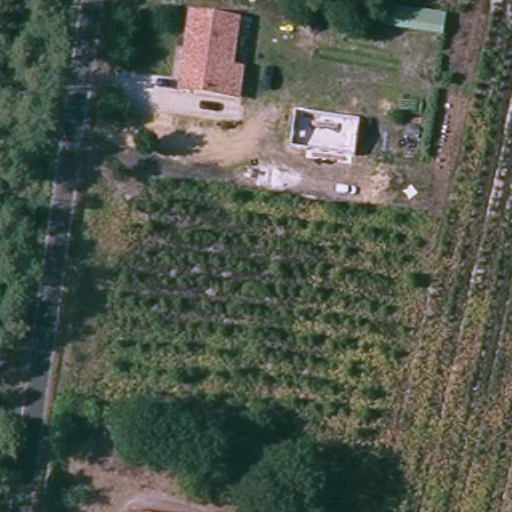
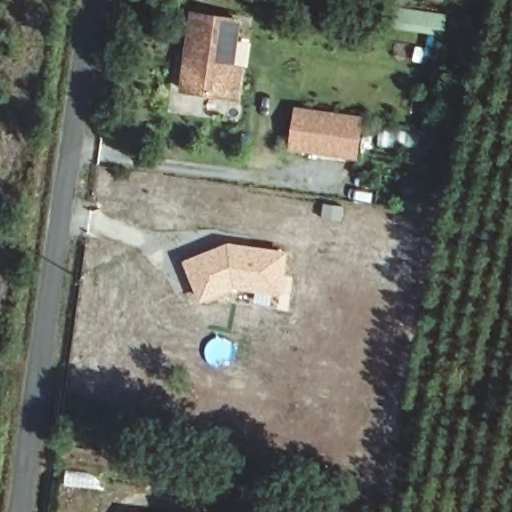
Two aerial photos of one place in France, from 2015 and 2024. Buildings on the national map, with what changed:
unchanged [(387,27),(391,7),(448,16),(444,37),(387,27)]
unchanged [(225,68),(236,69),(232,97),(177,92),(185,15),(231,19),(225,68)]
new [(288,150),(293,106),(364,116),(359,159),(288,150)]
new [(282,296),(235,289),(201,302),(183,260),(230,242),(289,251),(282,296)]

